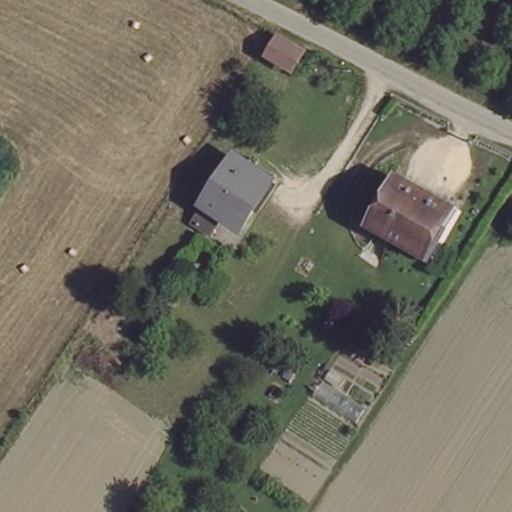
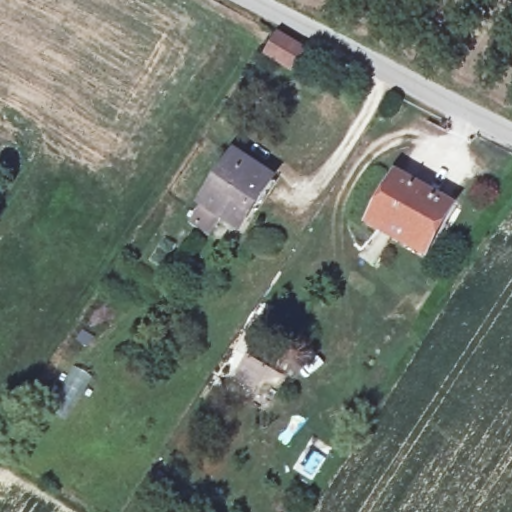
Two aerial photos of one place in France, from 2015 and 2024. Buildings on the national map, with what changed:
unchanged [(307,50),(294,71),(266,53),(280,33),(307,50)]
unchanged [(267,179),(235,220),(220,209),(203,230),(186,217),(236,155),(267,179)]
unchanged [(450,213),(423,252),(374,216),(400,180),(450,213)]

